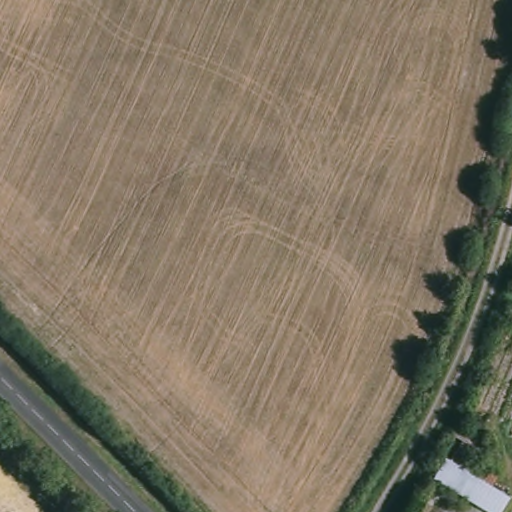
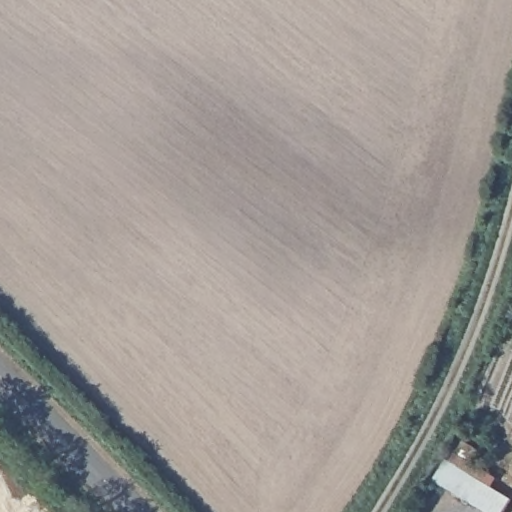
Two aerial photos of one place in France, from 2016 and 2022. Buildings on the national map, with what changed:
unchanged [(509,503),(504,512),(477,512),(432,483),(444,463),(449,466),(453,457),(494,482),(489,491),(509,503)]

